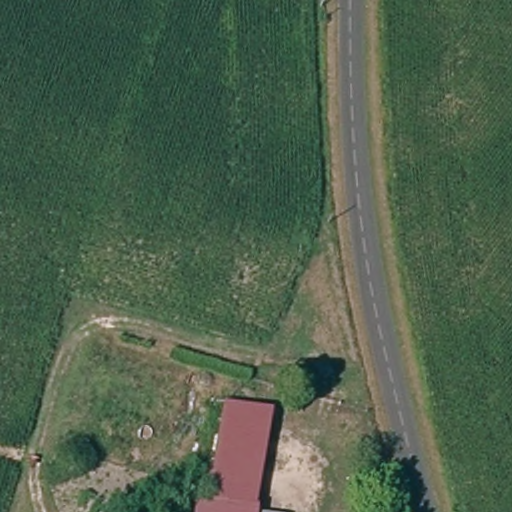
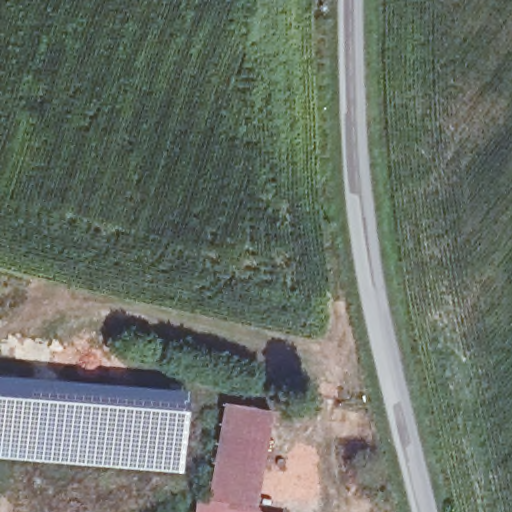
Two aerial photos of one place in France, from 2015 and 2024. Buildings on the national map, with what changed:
new [(185,390),(184,408),(0,394),(0,375),(185,390)]
new [(184,408),(181,470),(175,469),(176,460),(157,459),(155,468),(0,458),(0,394),(184,408)]
unchanged [(253,511),(208,502),(208,499),(210,490),(228,403),(241,406),(273,413),(253,511)]
unchanged [(253,511),(253,512),(194,512),(196,500),(208,502),(253,511)]
unchanged [(253,512),(253,511),(257,512),(253,512)]

